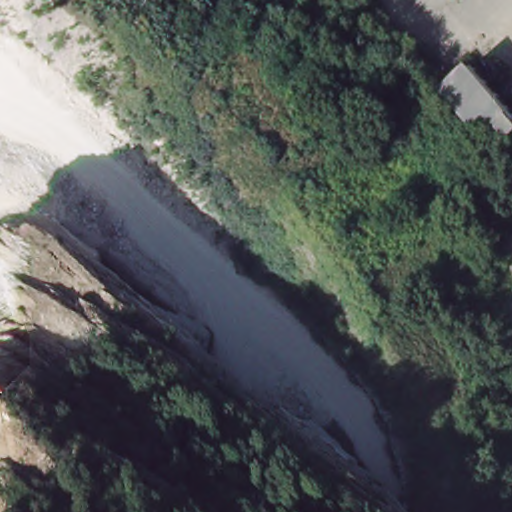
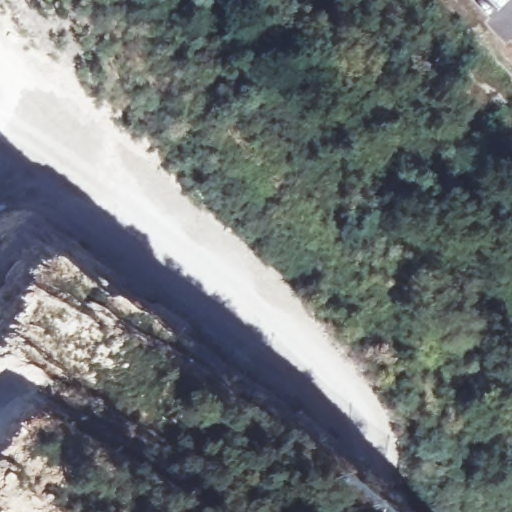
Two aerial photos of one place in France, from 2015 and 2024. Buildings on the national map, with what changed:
unchanged [(498,146),(452,90),(481,66),(512,103),(512,135),(498,146)]

